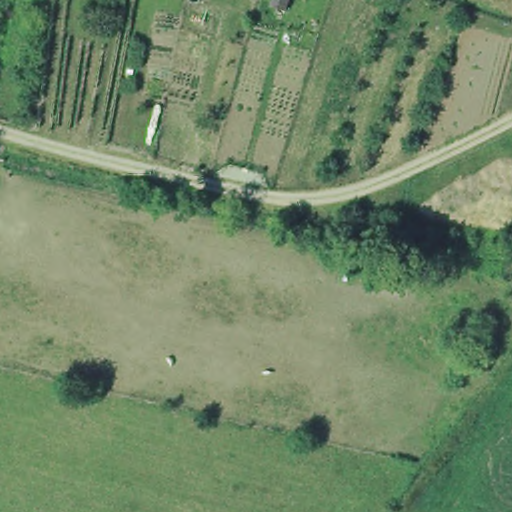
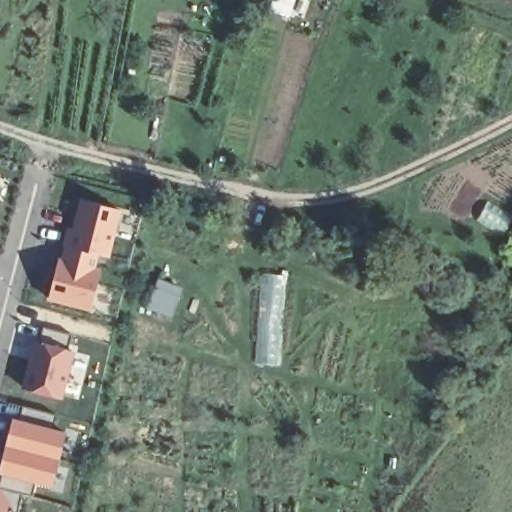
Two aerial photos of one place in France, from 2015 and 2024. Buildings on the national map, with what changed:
new [(120,207),(109,258),(97,254),(95,263),(103,267),(92,312),(43,298),(59,244),(66,247),(79,194),(120,207)]
new [(62,401),(18,387),(32,337),(37,338),(42,326),(70,334),(67,347),(74,348),(62,401)]
new [(50,429),(62,431),(51,489),(33,485),(32,496),(22,492),(16,512),(0,512),(0,478),(2,472),(0,472),(0,451),(9,420),(17,422),(18,407),(57,415),(50,429)]

